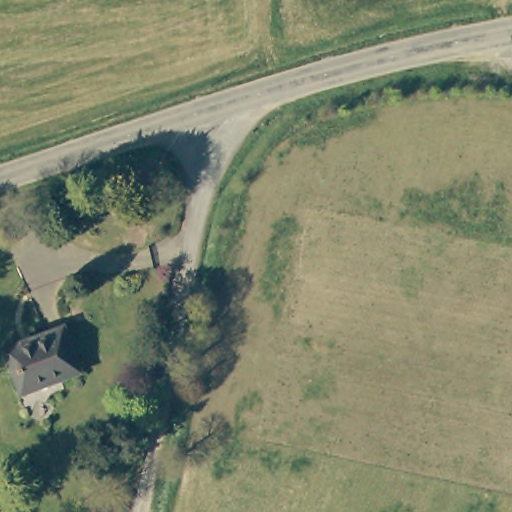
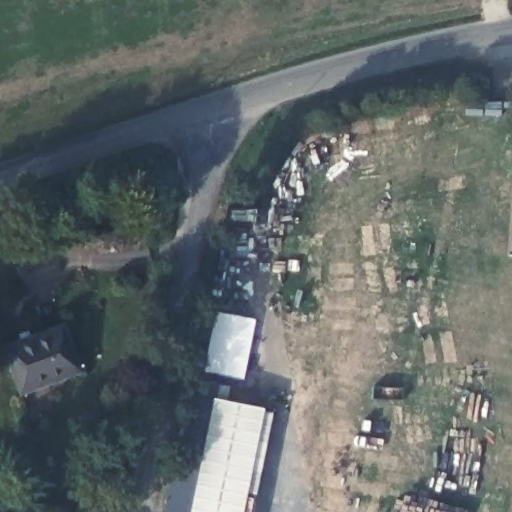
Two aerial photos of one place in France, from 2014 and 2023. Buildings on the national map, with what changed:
unchanged [(0,349),(0,344),(58,324),(75,373),(15,394),(0,349)]
new [(263,383),(202,373),(210,333),(268,344),(263,383)]
new [(251,512),(168,512),(183,450),(203,453),(214,399),(264,409),(273,414),(251,512)]

